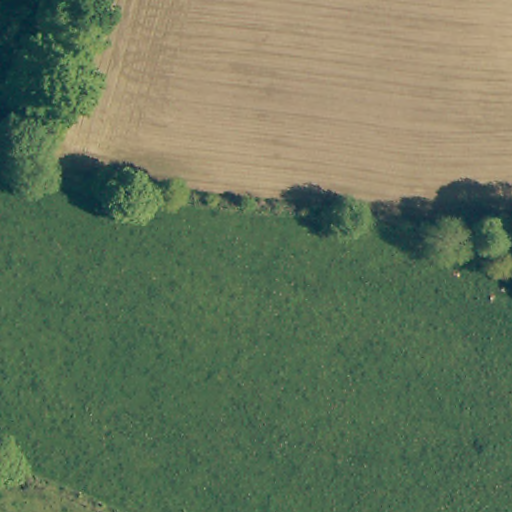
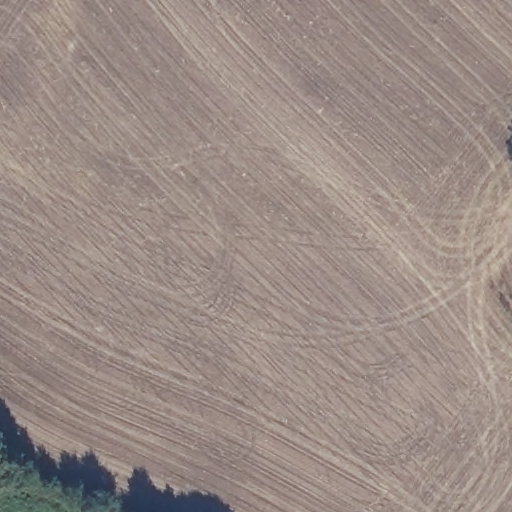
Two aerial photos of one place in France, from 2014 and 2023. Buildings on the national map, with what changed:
[]

